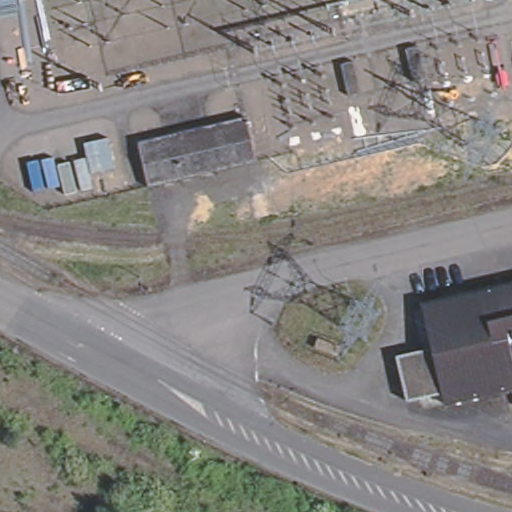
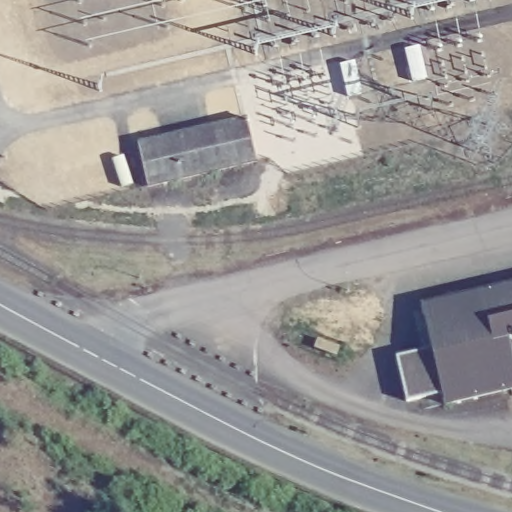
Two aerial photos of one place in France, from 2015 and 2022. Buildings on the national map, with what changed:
unchanged [(137,146),(242,120),(253,165),(148,190),(137,146)]
unchanged [(421,311),(512,289),(512,386),(444,403),(421,311)]

